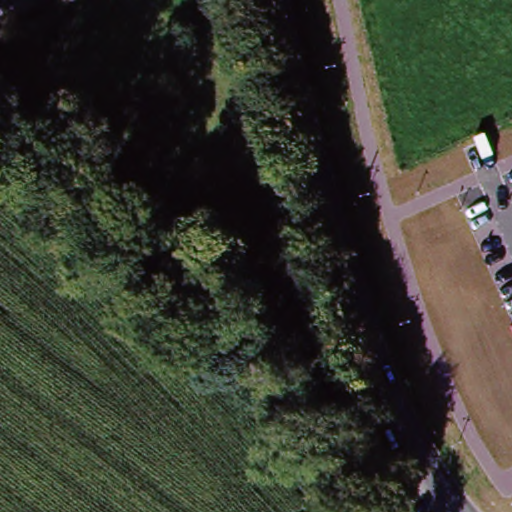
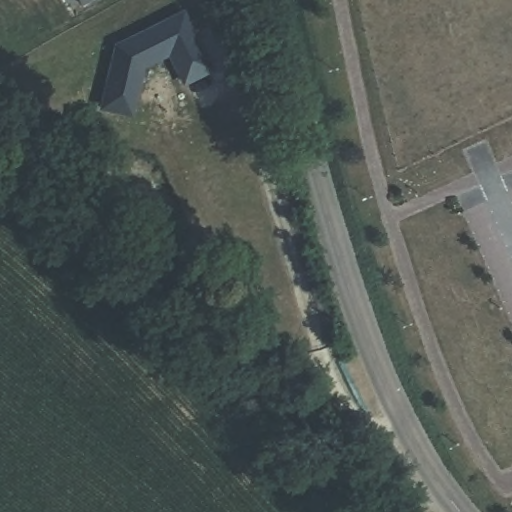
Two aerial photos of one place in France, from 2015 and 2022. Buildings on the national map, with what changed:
demolished [(0,32),(0,0),(73,0),(74,5),(45,14),(46,18),(0,32)]
new [(82,4),(80,0),(90,0),(82,4)]
new [(140,67),(126,117),(97,108),(115,45),(185,14),(211,73),(183,85),(169,55),(140,67)]

